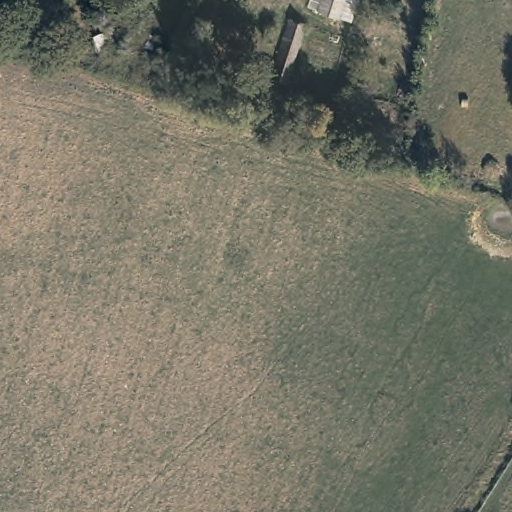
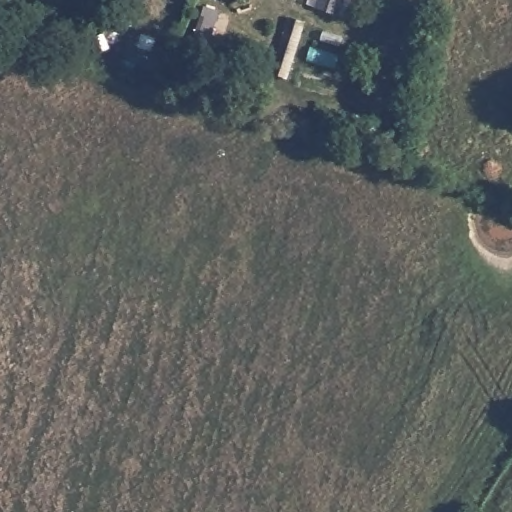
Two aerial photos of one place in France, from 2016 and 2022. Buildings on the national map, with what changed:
unchanged [(301,27),(281,82),(266,75),(288,21),(301,27)]

